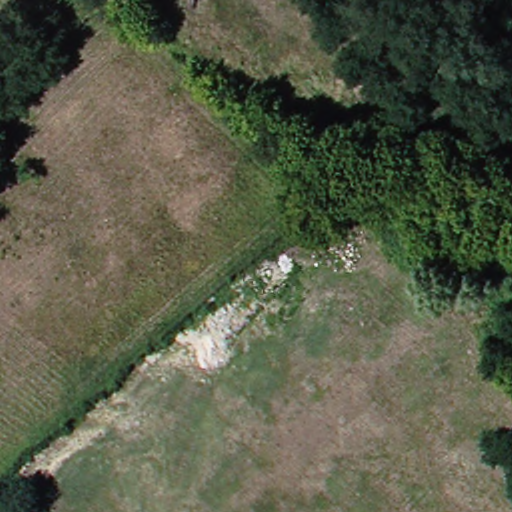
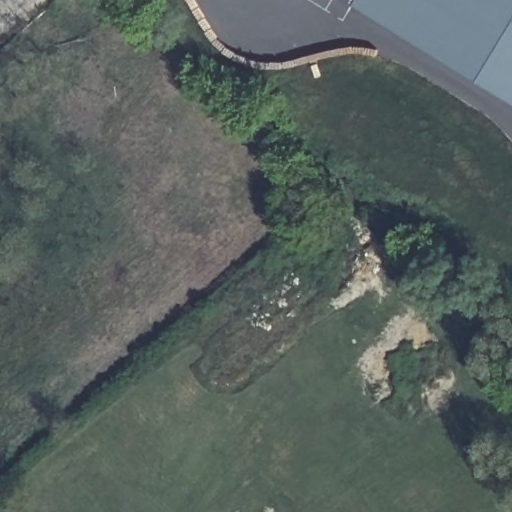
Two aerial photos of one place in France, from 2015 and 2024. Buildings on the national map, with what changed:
new [(354,3),(356,0),(512,0),(512,100),(354,3)]

